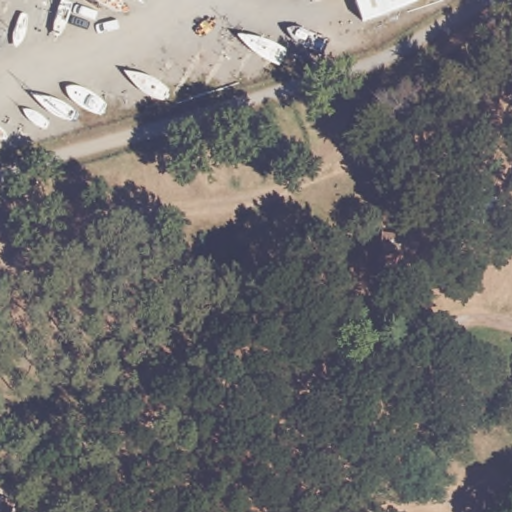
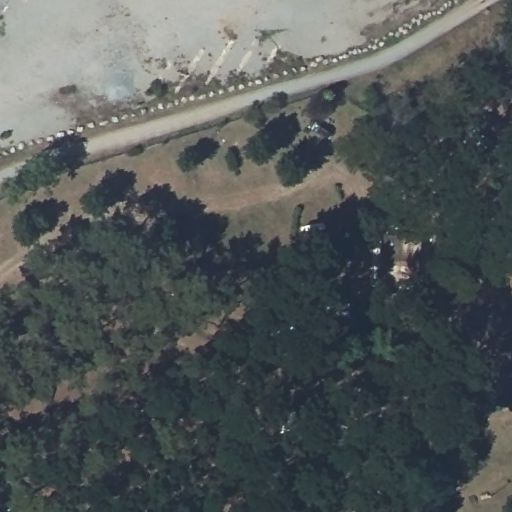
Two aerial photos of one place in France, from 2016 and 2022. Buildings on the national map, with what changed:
demolished [(355,0),(421,0),(363,22),(355,0)]
unchanged [(380,275),(382,232),(409,235),(405,277),(380,275)]
unchanged [(19,500),(14,512),(0,512),(0,493),(19,500)]

